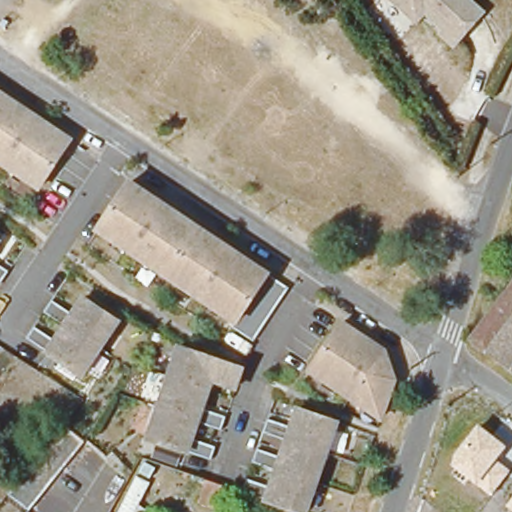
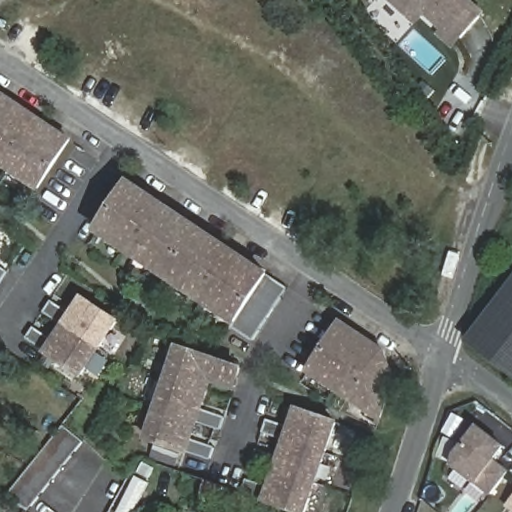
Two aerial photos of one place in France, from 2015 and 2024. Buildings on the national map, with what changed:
unchanged [(47,0),(50,0),(49,1),(47,0)]
unchanged [(446,28),(426,11),(418,21),(407,12),(393,0),(473,0),(485,10),(459,40),(455,44),(442,32),(446,28)]
unchanged [(56,133),(74,146),(42,192),(4,167),(0,164),(0,96),(56,133)]
unchanged [(246,261),(273,279),(242,327),(210,305),(103,234),(135,186),(246,261)]
unchanged [(445,245),(452,247),(446,266),(438,263),(445,245)]
unchanged [(0,283),(0,266),(8,271),(0,283)]
unchanged [(512,288),(512,377),(469,346),(501,303),(512,288)]
unchanged [(116,322),(80,377),(46,353),(82,300),(116,322)]
unchanged [(385,352),(395,380),(381,418),(310,371),(342,323),(385,352)]
unchanged [(242,369),(236,387),(212,380),(188,452),(149,438),(180,347),(242,369)]
unchanged [(336,423),(306,512),(299,512),(278,505),(267,501),(298,410),(336,423)]
unchanged [(506,445),(496,457),(497,458),(510,469),(489,494),(476,481),(474,481),(451,464),(454,453),(477,424),(506,445)]
unchanged [(81,443),(28,511),(7,493),(60,428),(81,443)]
unchanged [(200,503),(207,480),(212,482),(226,487),(218,510),(200,503)]
unchanged [(512,497),(512,510),(506,505),(512,497)]

